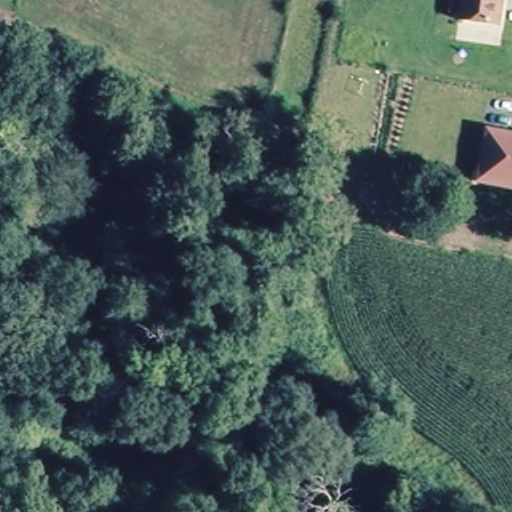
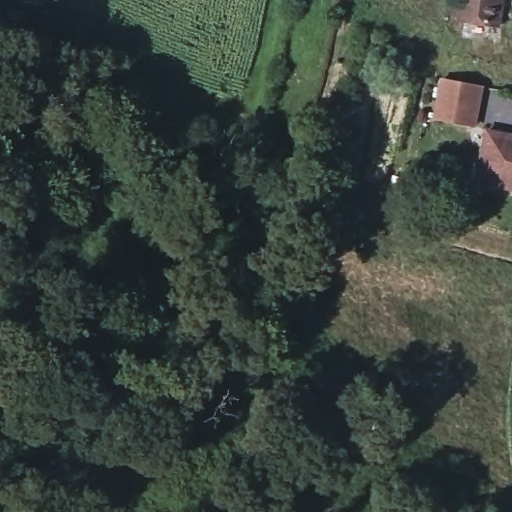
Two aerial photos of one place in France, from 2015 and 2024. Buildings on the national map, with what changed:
unchanged [(502,29),(457,24),(462,0),(509,0),(502,29)]
new [(477,130),(432,120),(440,78),(484,87),(477,130)]
unchanged [(473,186),(485,127),(512,133),(512,193),(473,186)]

